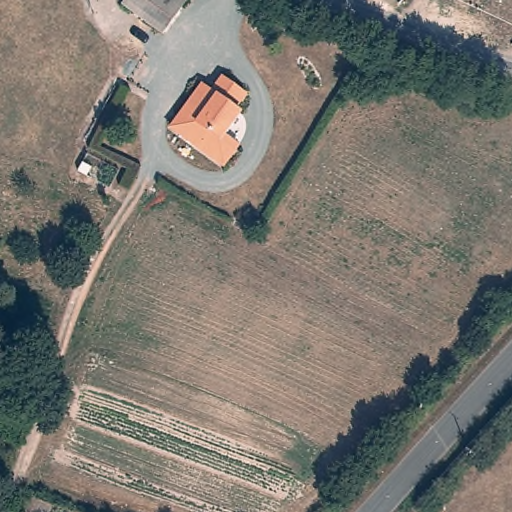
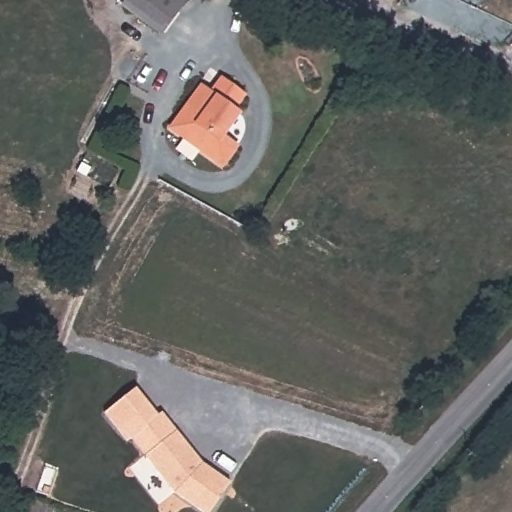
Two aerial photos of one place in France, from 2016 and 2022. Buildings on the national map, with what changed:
unchanged [(128,0),(190,0),(194,3),(184,14),(165,40),(121,10),(128,0)]
unchanged [(235,156),(225,171),(174,136),(204,93),(214,98),(224,84),(244,98),(235,114),(243,119),(228,142),(239,151),(235,156)]
new [(136,386),(159,416),(164,412),(202,464),(230,482),(210,512),(201,512),(174,494),(145,457),(131,440),(128,443),(103,413),(136,386)]

